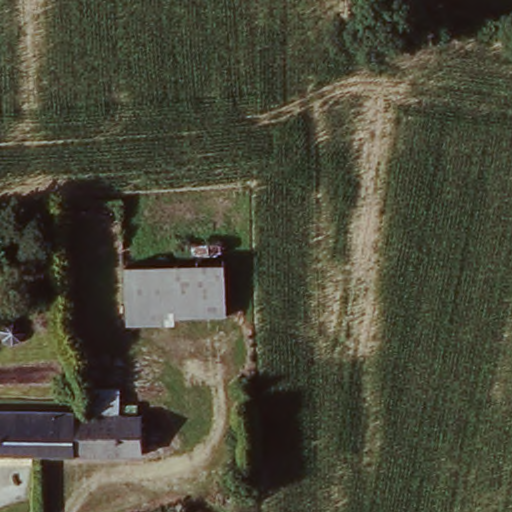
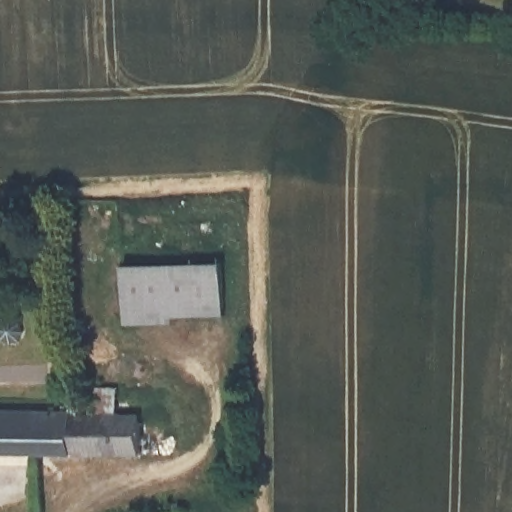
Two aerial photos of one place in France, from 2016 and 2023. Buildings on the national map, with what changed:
unchanged [(125,266),(226,263),(227,321),(127,324),(125,266)]
unchanged [(142,455),(146,457),(145,464),(35,461),(0,460),(0,418),(74,419),(75,423),(144,425),(142,455)]

